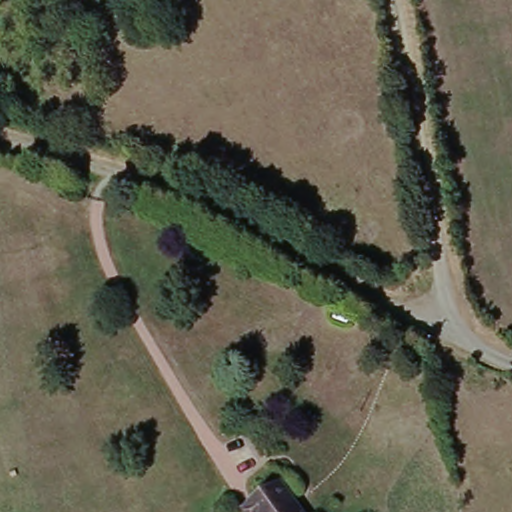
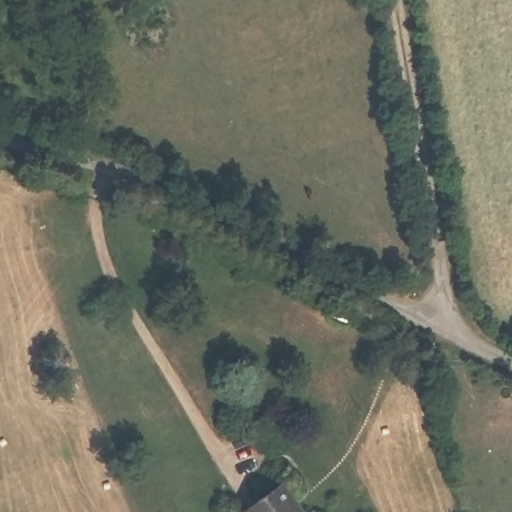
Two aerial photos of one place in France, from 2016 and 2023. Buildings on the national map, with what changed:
unchanged [(298,512),(252,512),(274,488),(298,512)]

